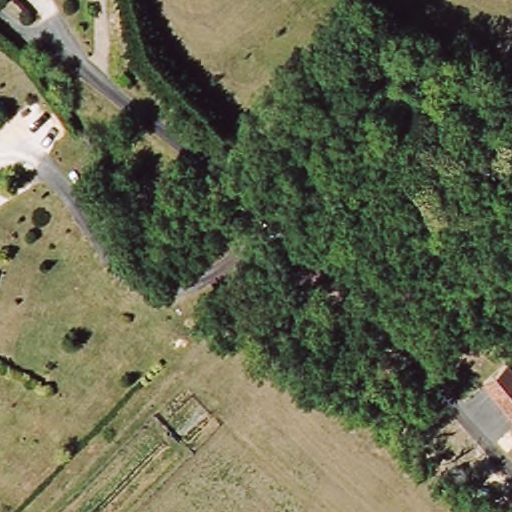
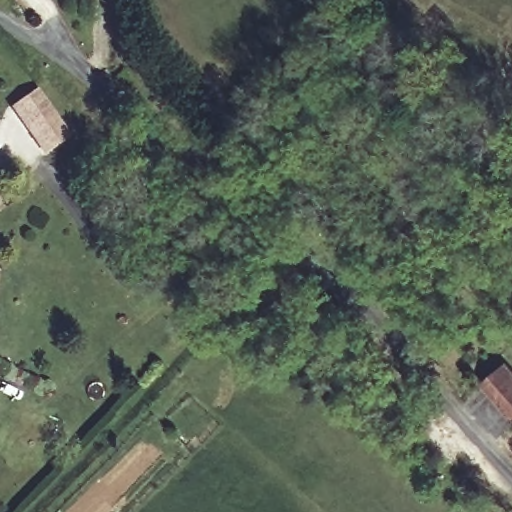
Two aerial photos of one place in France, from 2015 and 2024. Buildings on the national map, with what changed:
new [(10,107),(37,87),(71,134),(43,154),(10,107)]
unchanged [(505,363),(512,370),(512,416),(482,383),(505,363)]

